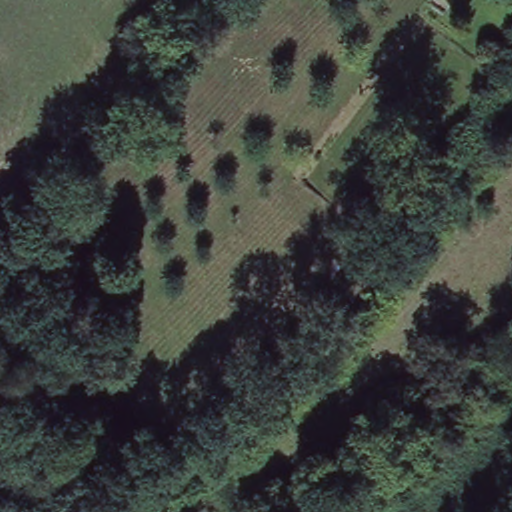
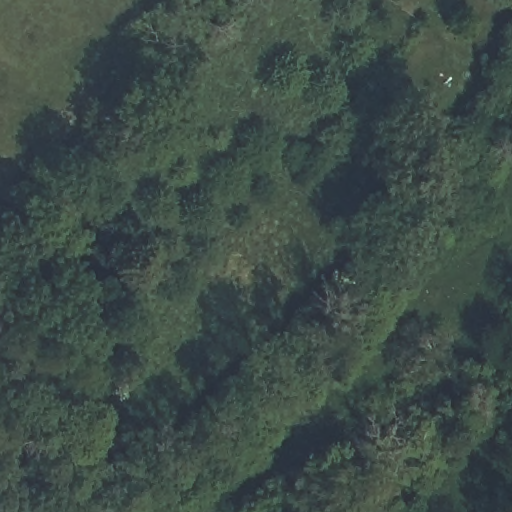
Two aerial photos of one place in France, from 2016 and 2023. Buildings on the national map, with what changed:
[]

